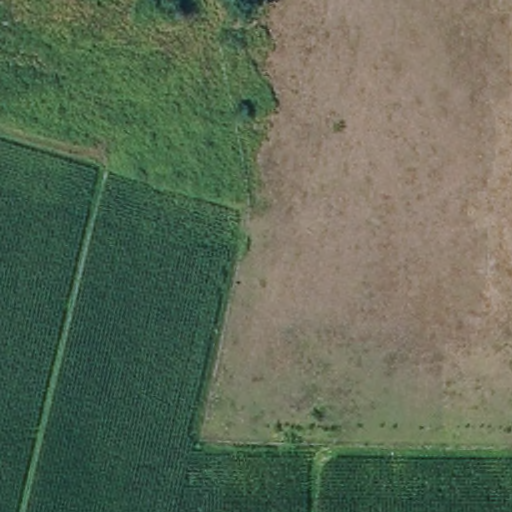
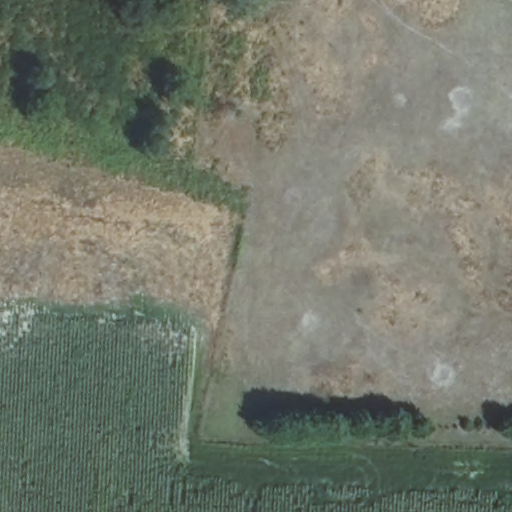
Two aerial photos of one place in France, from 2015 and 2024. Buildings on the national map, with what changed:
[]

